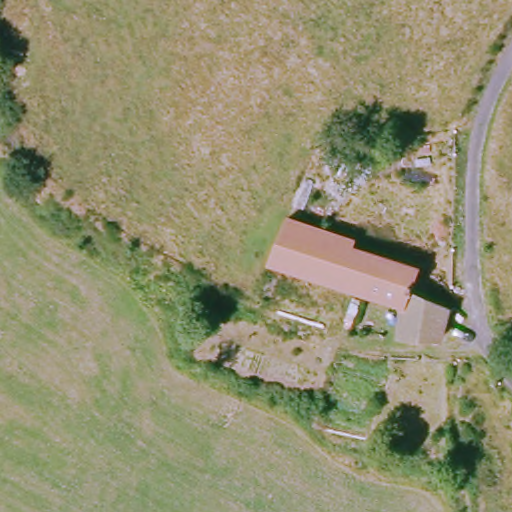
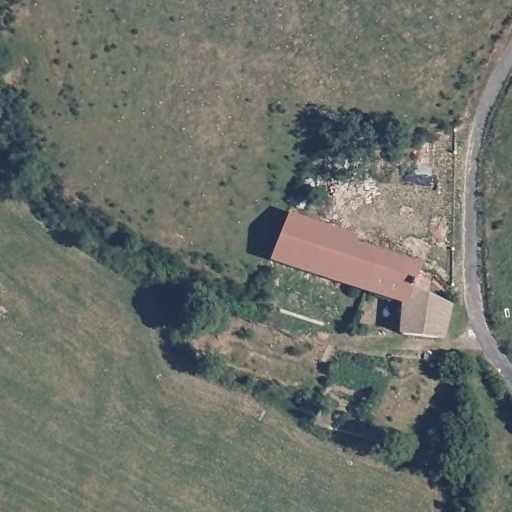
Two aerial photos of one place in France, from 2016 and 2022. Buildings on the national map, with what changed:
unchanged [(368,251),(367,255),(355,290),(292,272),(261,263),(278,222),(368,251)]
unchanged [(396,335),(399,303),(355,290),(367,255),(415,270),(409,294),(435,305),(431,337),(396,335)]
unchanged [(292,272),(278,311),(244,301),(261,263),(292,272)]

